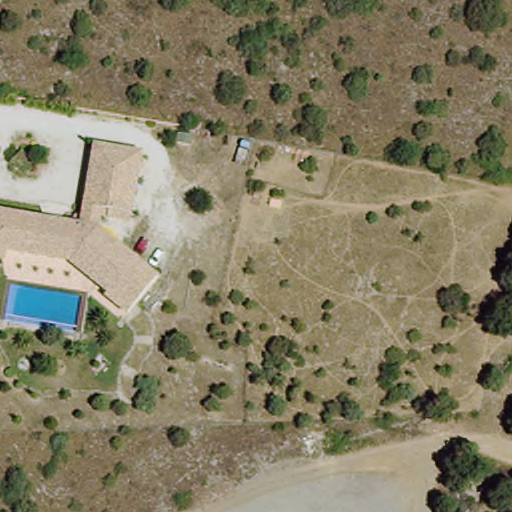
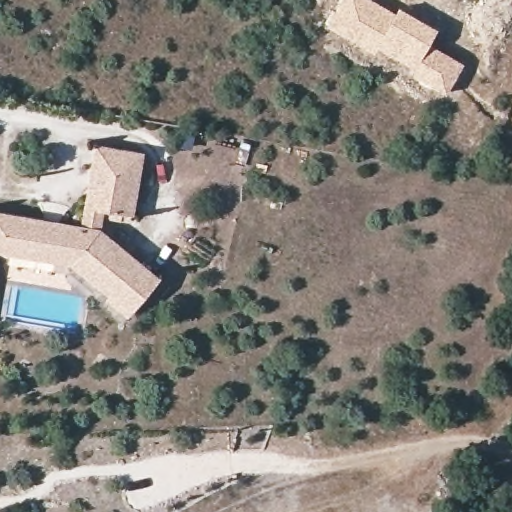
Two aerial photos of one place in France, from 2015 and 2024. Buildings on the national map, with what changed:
new [(345,0),(371,0),(395,13),(401,6),(436,31),(429,45),(463,64),(444,92),(413,73),(419,60),(382,40),(373,52),(330,24),(345,0)]
unchanged [(96,141),(144,148),(135,213),(107,208),(105,227),(162,273),(133,311),(75,264),(9,254),(0,253),(0,210),(84,222),(96,141)]
unchanged [(11,275),(9,254),(75,264),(133,311),(128,317),(90,287),(11,275)]

